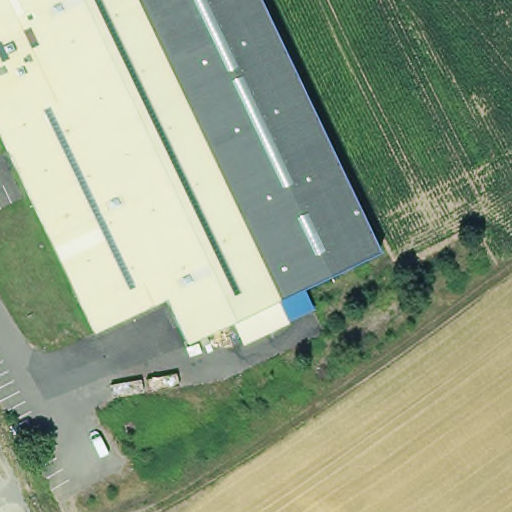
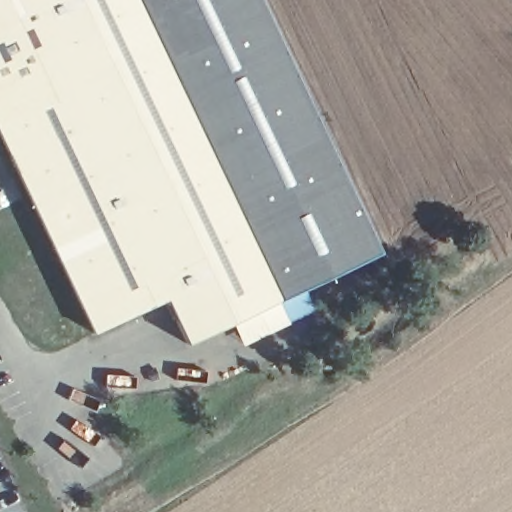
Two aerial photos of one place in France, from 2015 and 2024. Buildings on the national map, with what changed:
unchanged [(379,251),(301,287),(311,309),(243,344),(231,320),(183,341),(164,298),(93,331),(0,139),(0,0),(258,0),(379,251)]

